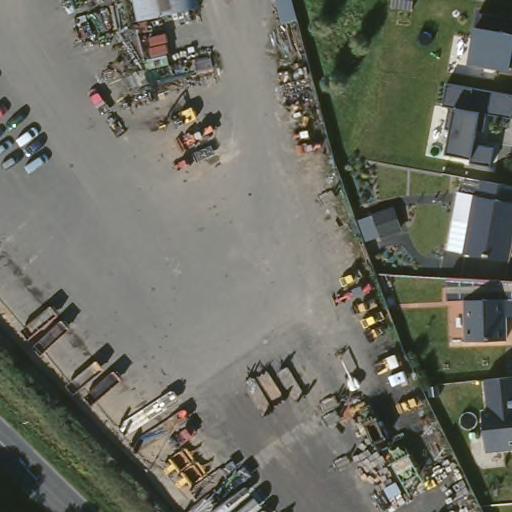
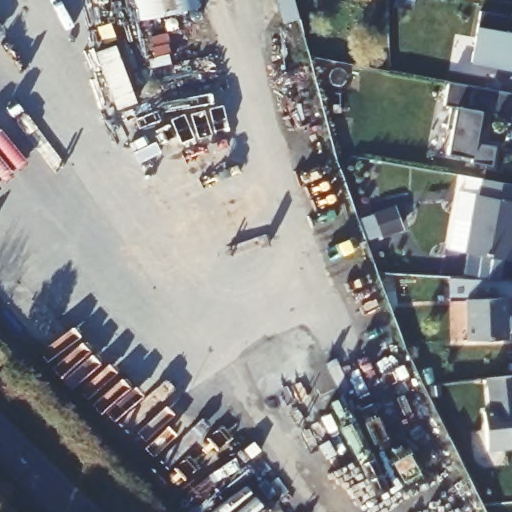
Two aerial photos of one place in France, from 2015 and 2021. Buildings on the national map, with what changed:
unchanged [(150,19),(145,0),(208,0),(210,8),(150,19)]
unchanged [(479,13),(512,20),(512,70),(469,63),(476,31),(479,13)]
unchanged [(445,131),(450,109),(443,105),(449,84),(512,97),(512,117),(489,112),(486,129),(480,129),(477,143),(498,148),(495,164),(473,158),(449,151),(452,136),(445,131)]
unchanged [(512,183),(512,251),(511,259),(468,251),(479,193),(483,194),(486,178),(492,179),(512,183)]
unchanged [(379,205),(386,228),(368,234),(361,211),(379,205)]
unchanged [(509,352),(469,354),(468,314),(450,314),(449,290),(512,294),(512,328),(508,328),(509,352)]
unchanged [(512,447),(488,449),(484,410),(490,410),(487,377),(512,375),(512,447)]

